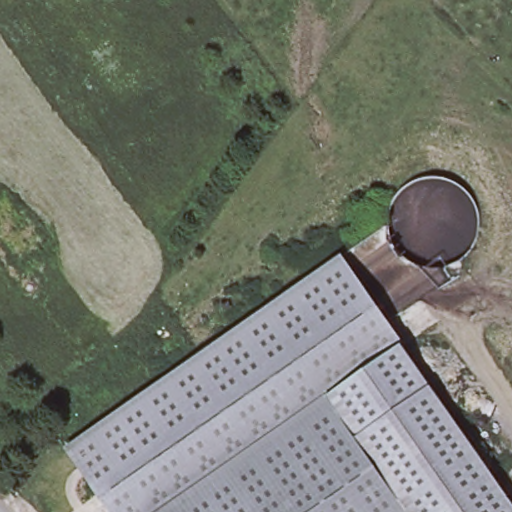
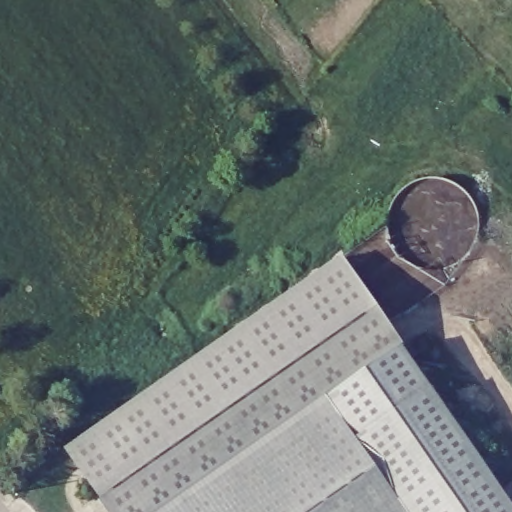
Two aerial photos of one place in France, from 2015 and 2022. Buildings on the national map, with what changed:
unchanged [(340,242),(399,328),(324,383),(153,508),(148,512),(113,512),(63,439),(340,242)]
unchanged [(512,492),(512,512),(415,512),(324,383),(399,328),(512,492)]
unchanged [(324,383),(415,512),(156,512),(153,508),(324,383)]

